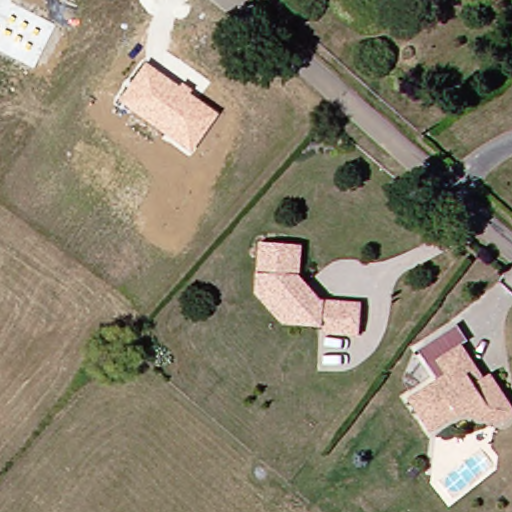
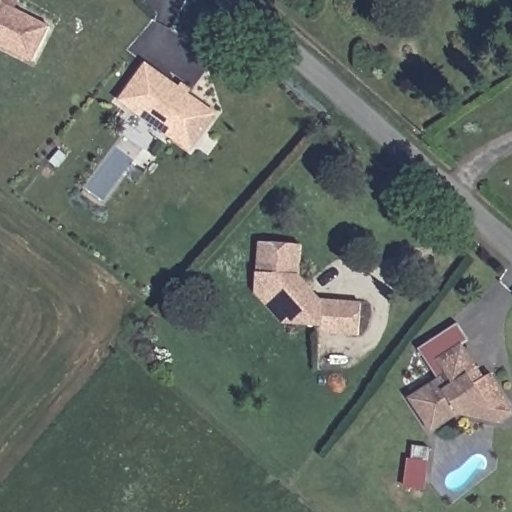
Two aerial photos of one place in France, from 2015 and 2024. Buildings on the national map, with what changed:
new [(0,48),(0,0),(19,0),(20,0),(16,10),(51,26),(33,64),(0,48)]
unchanged [(190,152),(118,102),(145,64),(178,87),(180,83),(191,90),(189,95),(216,113),(190,152)]
unchanged [(322,336),(312,326),(276,323),(247,295),(252,244),(294,248),(292,278),(313,301),(355,305),(352,339),(322,336)]
unchanged [(497,430),(479,425),(459,420),(428,437),(405,401),(440,378),(431,363),(454,348),(472,373),(479,382),(485,378),(496,396),(511,418),(497,430)]

